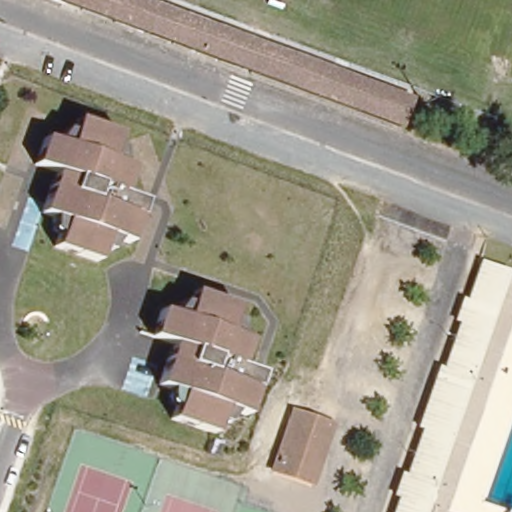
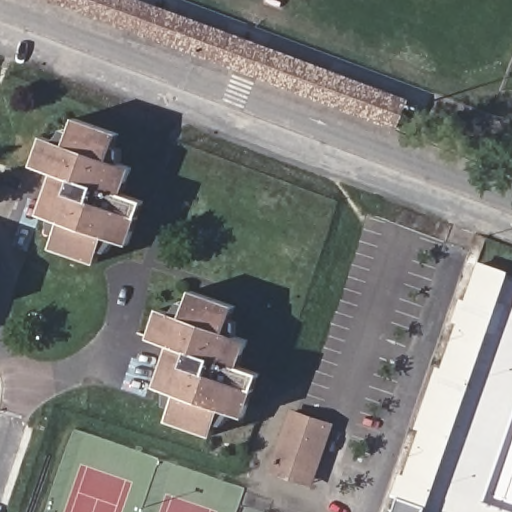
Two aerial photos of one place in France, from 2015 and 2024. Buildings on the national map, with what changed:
unchanged [(408,103),(403,113),(396,130),(250,75),(105,20),(49,0),(134,0),(408,103)]
unchanged [(104,238),(96,261),(63,250),(70,228),(49,221),(63,176),(34,167),(44,138),(64,144),(71,121),(119,136),(110,162),(131,169),(122,199),(140,204),(126,245),(104,238)]
unchanged [(430,505),(402,496),(449,355),(451,348),(468,298),(480,263),(505,272),(495,306),(487,328),(472,375),(467,389),(455,425),(450,440),(436,485),(430,505)]
unchanged [(254,332),(244,358),(265,365),(250,406),(230,399),(216,438),(180,426),(190,399),(168,391),(183,351),(150,339),(160,311),(181,318),(191,292),(239,309),(232,325),(254,332)]
unchanged [(294,411),(335,424),(317,472),(312,485),(271,470),(276,457),(294,411)]
unchanged [(430,505),(427,512),(397,512),(402,496),(430,505)]

